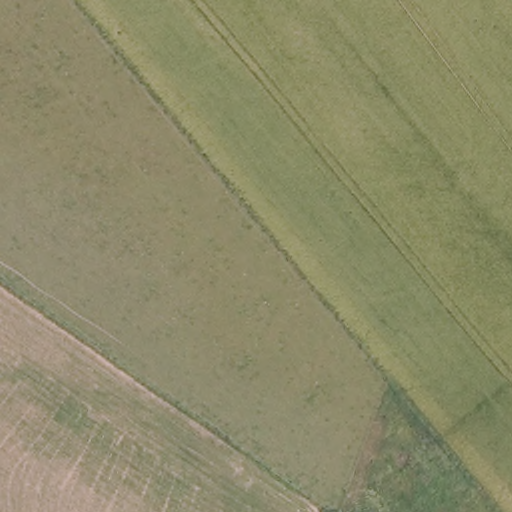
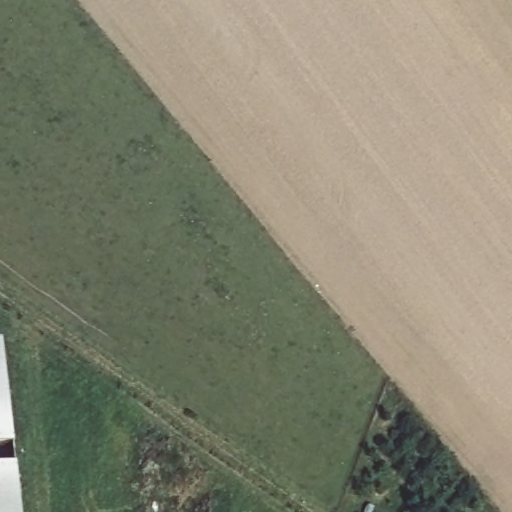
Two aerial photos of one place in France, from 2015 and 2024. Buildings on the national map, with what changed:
new [(20,512),(0,512),(0,344),(20,512)]

